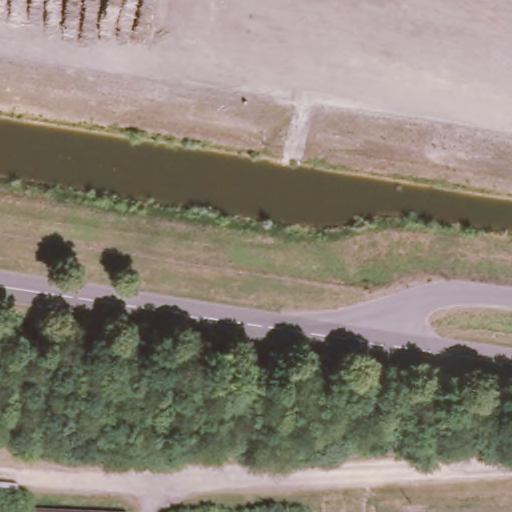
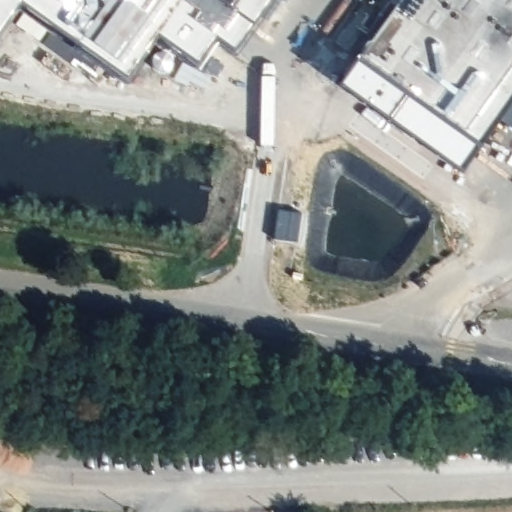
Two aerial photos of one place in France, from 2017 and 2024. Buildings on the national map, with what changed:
new [(236,52),(217,41),(200,65),(161,38),(130,81),(23,7),(0,39),(0,0),(274,0),(253,29),(236,52)]
new [(357,65),(404,0),(512,0),(512,109),(480,154),(357,65)]

